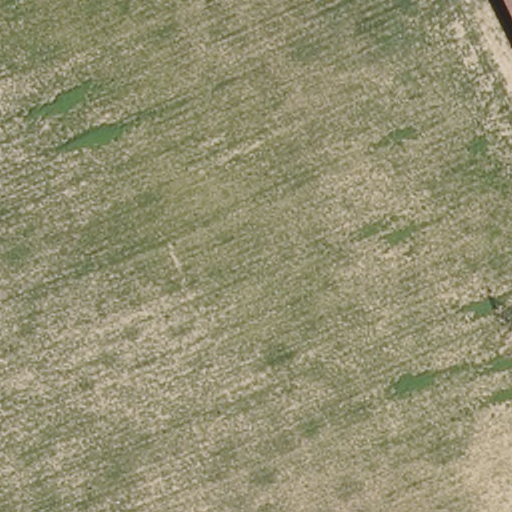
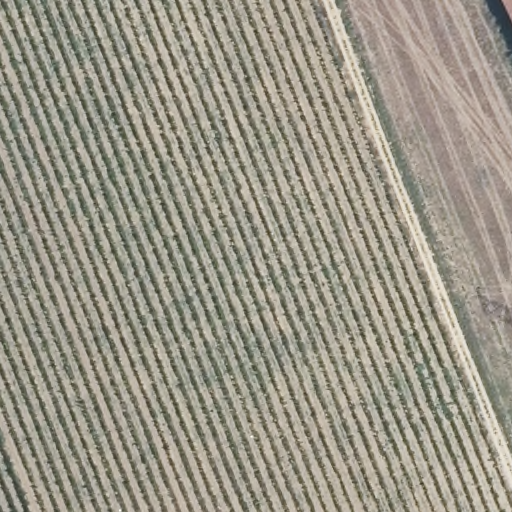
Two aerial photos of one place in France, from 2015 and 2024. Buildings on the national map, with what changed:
unchanged [(512,14),(505,0),(512,0),(512,14)]

